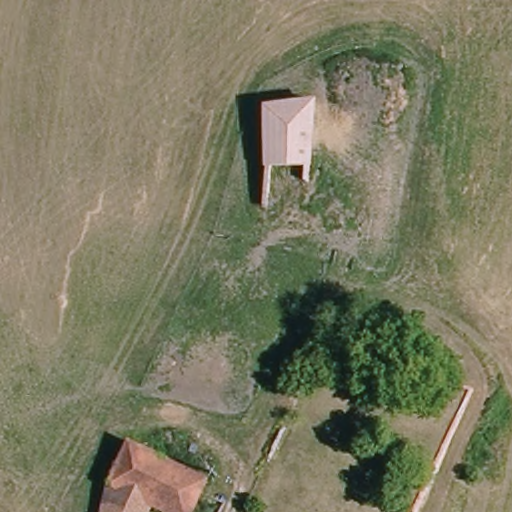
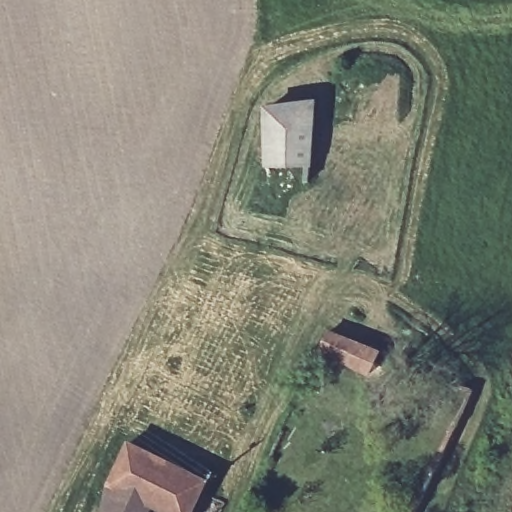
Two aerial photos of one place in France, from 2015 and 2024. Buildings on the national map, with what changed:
unchanged [(317,100),(312,165),(267,168),(265,107),(317,100)]
new [(379,352),(368,376),(318,354),(327,330),(379,352)]
unchanged [(134,443),(216,485),(202,512),(173,512),(149,499),(142,512),(113,512),(117,483),(134,443)]

